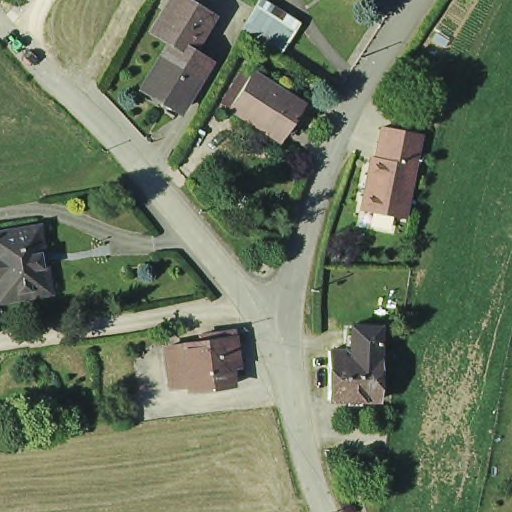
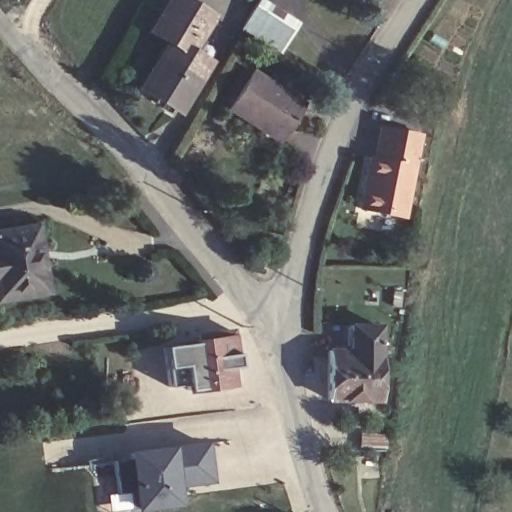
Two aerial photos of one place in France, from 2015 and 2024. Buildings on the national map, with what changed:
unchanged [(168,33),(149,21),(162,0),(195,0),(207,7),(186,41),(204,52),(195,66),(160,46),(168,33)]
new [(259,0),(266,0),(300,21),(279,55),(241,30),(259,0)]
unchanged [(365,0),(365,1),(364,0),(365,0)]
unchanged [(153,99),(134,87),(160,46),(195,66),(174,103),(170,109),(153,99)]
unchanged [(299,105),(278,140),(226,108),(248,73),(299,105)]
unchanged [(423,135),(406,218),(363,210),(379,126),(423,135)]
unchanged [(0,287),(0,231),(39,223),(44,247),(38,249),(44,279),(46,292),(4,299),(2,287),(0,287)]
unchanged [(181,341),(198,339),(197,333),(228,327),(231,334),(234,352),(226,354),(231,383),(188,388),(188,381),(170,385),(163,345),(181,341)]
unchanged [(326,402),(326,362),(326,356),(348,355),(349,333),(376,334),(376,362),(374,404),(326,402)]
new [(178,488),(181,507),(139,512),(131,512),(128,491),(116,492),(113,462),(125,462),(124,451),(173,445),(208,440),(213,482),(178,488)]

